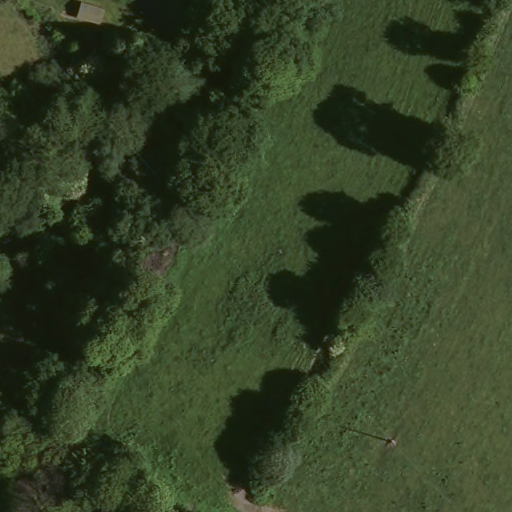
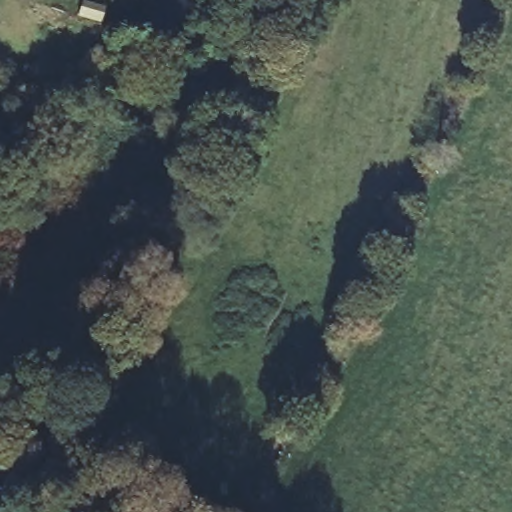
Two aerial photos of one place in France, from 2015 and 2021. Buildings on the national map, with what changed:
[]

